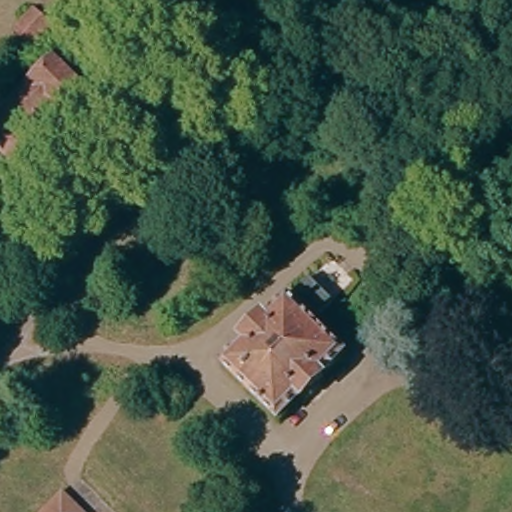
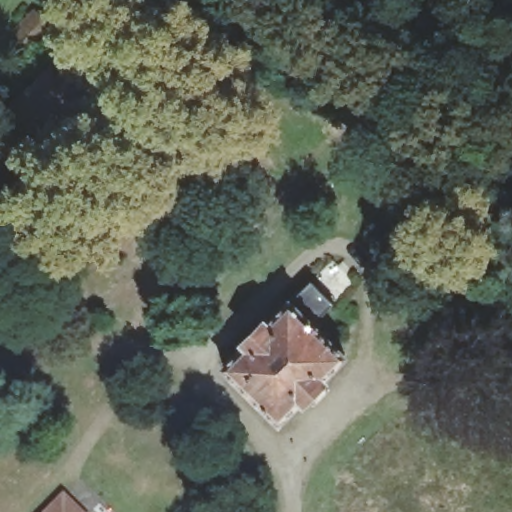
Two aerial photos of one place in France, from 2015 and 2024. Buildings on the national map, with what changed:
unchanged [(34,0),(56,21),(37,41),(33,37),(11,17),(26,0),(34,0)]
unchanged [(16,169),(0,153),(0,109),(46,58),(89,96),(70,115),(41,144),(16,169)]
unchanged [(332,310),(312,332),(337,357),(280,420),(226,369),(246,346),(243,344),(300,281),(332,310)]
unchanged [(58,488),(79,512),(35,512),(58,488)]

